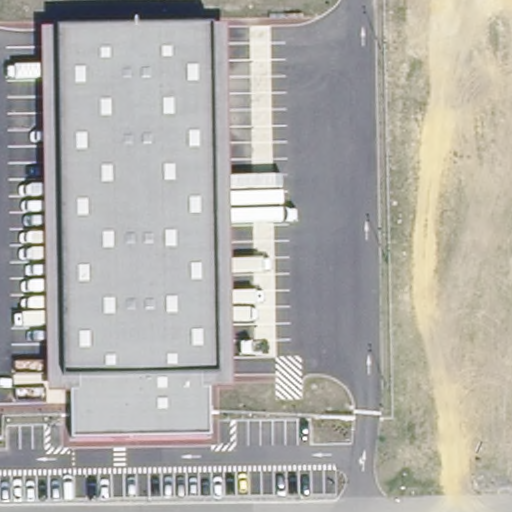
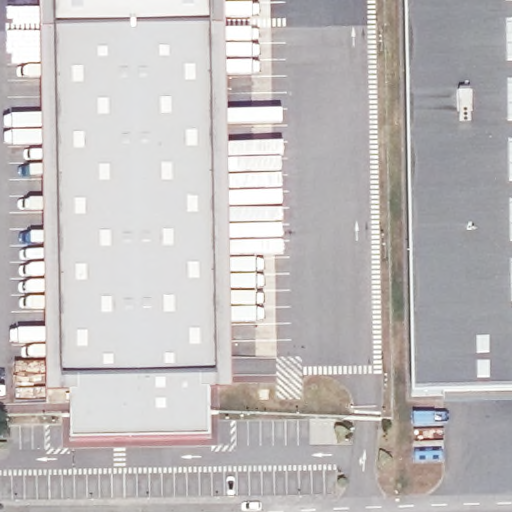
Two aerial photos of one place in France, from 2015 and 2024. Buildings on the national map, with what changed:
new [(211,27),(57,29),(41,30),(41,0),(226,0),(226,27),(211,27)]
new [(407,0),(512,0),(512,394),(412,396),(407,0)]
unchanged [(211,27),(226,27),(231,390),(208,390),(209,438),(72,440),(70,392),(48,393),(41,30),(211,27)]

